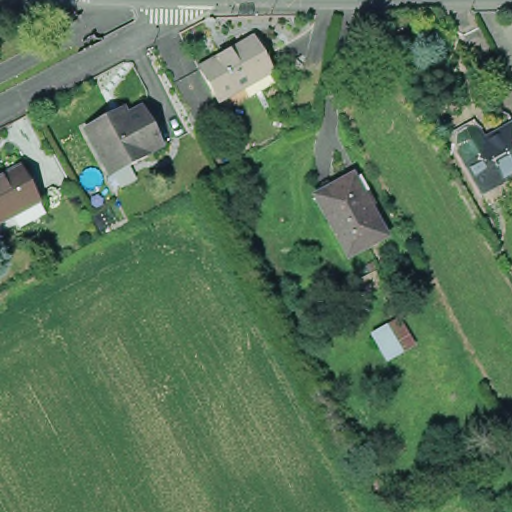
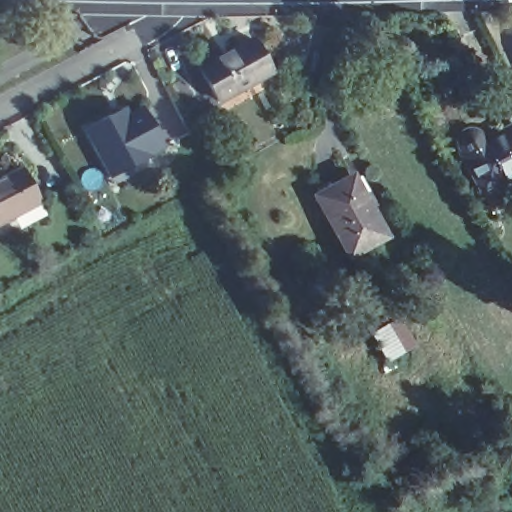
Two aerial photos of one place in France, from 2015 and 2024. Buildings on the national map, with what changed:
unchanged [(226,103),(209,70),(263,42),(280,75),(226,103)]
unchanged [(485,187),(455,135),(457,134),(453,127),(458,114),(490,94),(506,100),(512,111),(512,188),(492,199),(485,187)]
unchanged [(93,136),(117,122),(122,130),(150,115),(171,153),(156,162),(157,164),(139,175),(135,167),(116,178),(93,136)]
unchanged [(42,205),(0,228),(0,186),(25,172),(42,205)]
unchanged [(357,181),(391,242),(354,262),(320,202),(357,181)]
unchanged [(404,316),(420,347),(390,366),(374,333),(404,316)]

